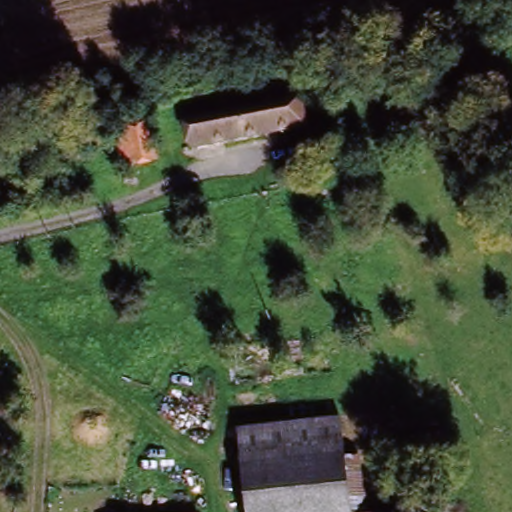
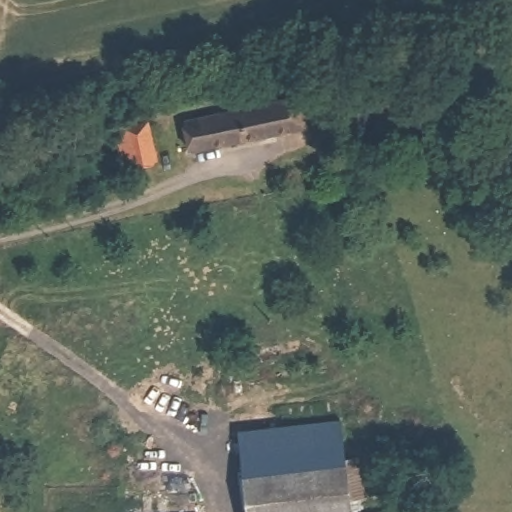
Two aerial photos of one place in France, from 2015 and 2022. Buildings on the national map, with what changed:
unchanged [(193,126),(300,102),(308,132),(201,155),(193,126)]
unchanged [(148,128),(156,165),(125,172),(116,135),(148,128)]
unchanged [(239,441),(339,428),(344,469),(243,482),(239,441)]
unchanged [(243,482),(344,469),(349,512),(247,512),(243,482)]

